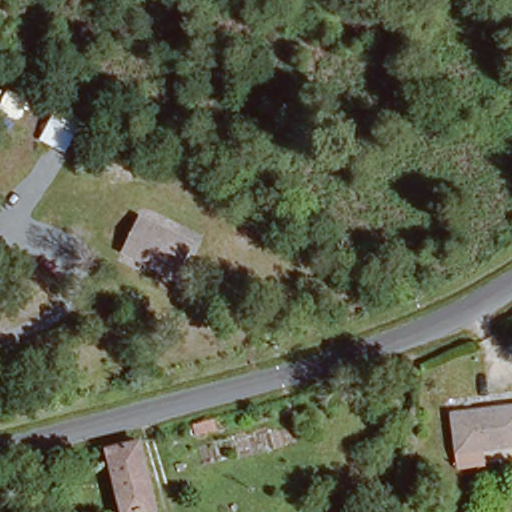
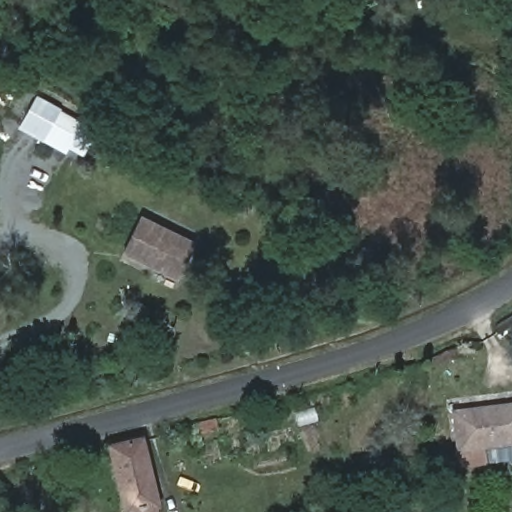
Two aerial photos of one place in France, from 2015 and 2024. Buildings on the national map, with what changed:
unchanged [(82,121),(65,153),(39,139),(59,109),(82,121)]
unchanged [(196,241),(177,276),(125,253),(142,215),(196,241)]
unchanged [(512,412),(512,448),(460,458),(453,422),(512,412)]
unchanged [(140,441),(157,507),(155,507),(156,512),(129,512),(111,449),(140,441)]

